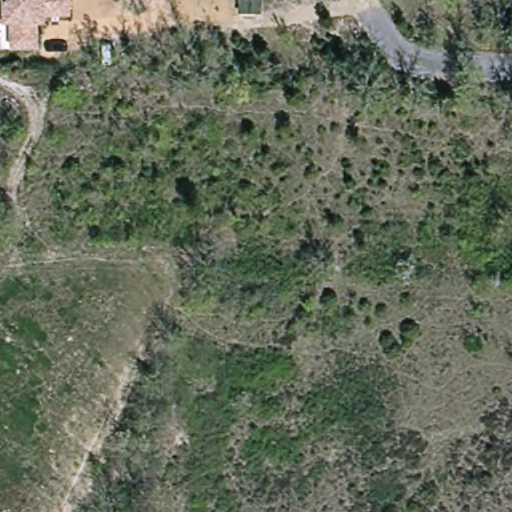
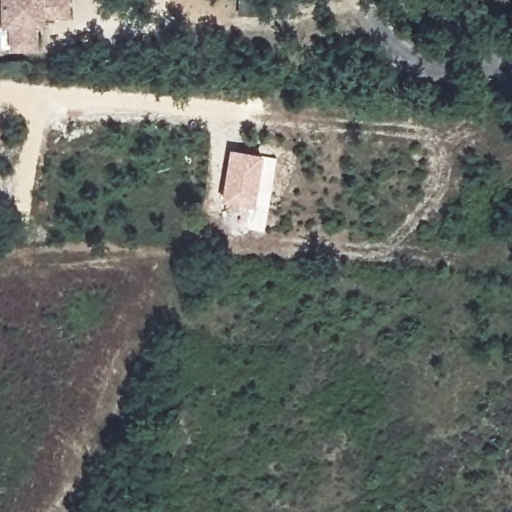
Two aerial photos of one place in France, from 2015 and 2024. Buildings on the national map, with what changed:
unchanged [(44,16),(44,25),(36,24),(35,49),(10,47),(12,23),(4,23),(0,22),(0,0),(69,0),(69,18),(44,16)]
new [(264,154),(256,207),(223,201),(231,148),(264,154)]

